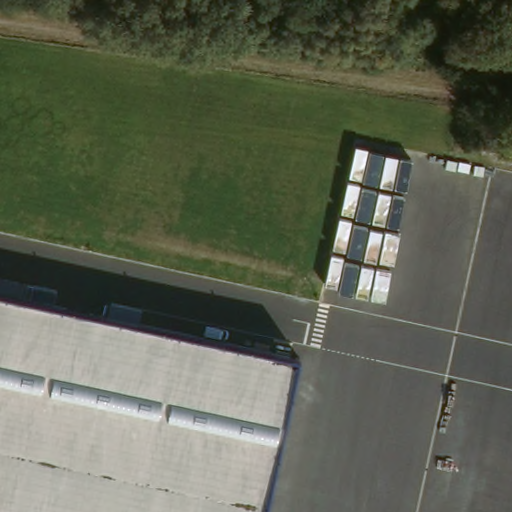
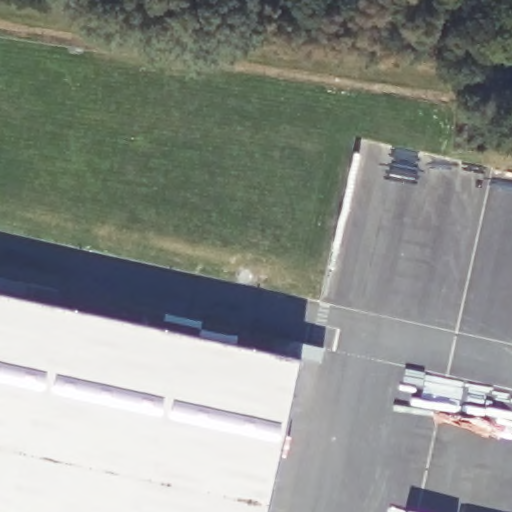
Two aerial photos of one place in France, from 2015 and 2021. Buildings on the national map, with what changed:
unchanged [(268,512),(0,512),(0,294),(303,359),(268,512)]

